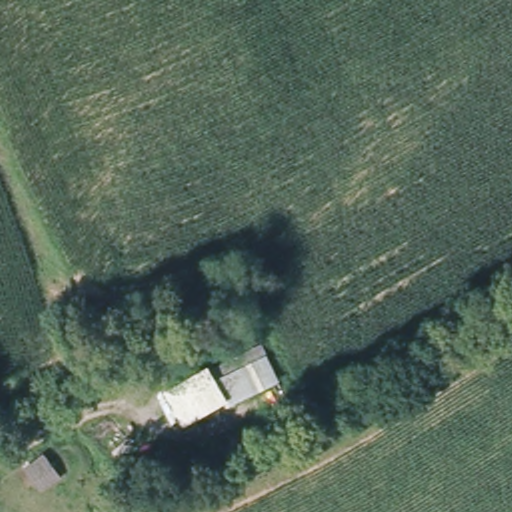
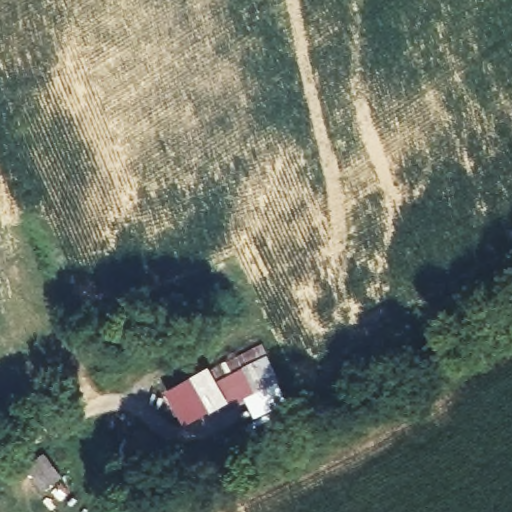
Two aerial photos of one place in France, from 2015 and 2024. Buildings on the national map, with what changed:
unchanged [(267,342),(287,383),(190,427),(169,386),(267,342)]
unchanged [(44,452),(59,480),(35,492),(21,463),(44,452)]

